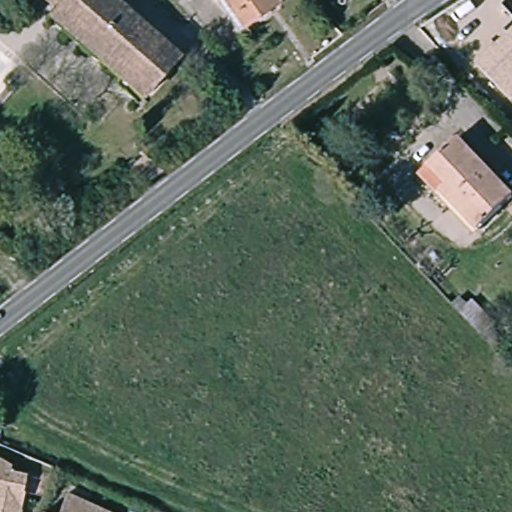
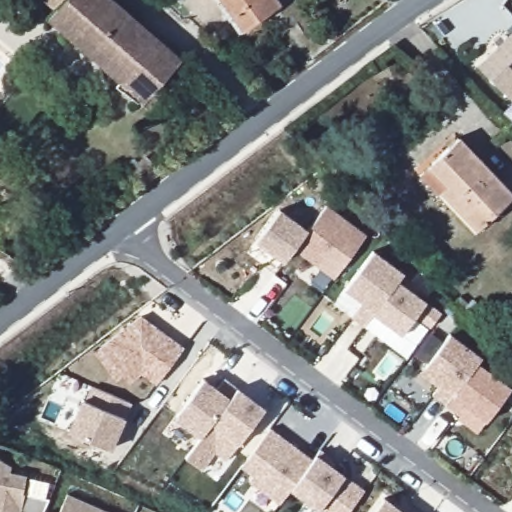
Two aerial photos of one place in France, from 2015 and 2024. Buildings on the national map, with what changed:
unchanged [(49,8),(39,0),(55,0),(49,8)]
unchanged [(172,48),(138,93),(43,16),(49,8),(55,0),(113,0),(172,48)]
unchanged [(250,29),(227,0),(279,0),(282,4),(250,29)]
unchanged [(475,64),(512,31),(512,101),(475,64)]
unchanged [(477,230),(442,191),(450,185),(428,161),(458,134),(512,193),(512,198),(477,230)]
new [(328,206),(368,236),(337,279),(297,249),(328,206)]
new [(297,249),(285,264),(255,243),(280,209),(310,231),(297,249)]
new [(365,328),(351,318),(361,302),(345,290),(375,250),(405,273),(398,283),(374,315),(365,328)]
new [(398,283),(442,315),(431,329),(415,318),(402,336),(374,315),(398,283)]
new [(460,296),(468,304),(473,300),(495,322),(482,335),(452,304),(460,296)]
new [(143,316),(185,348),(157,384),(142,373),(130,383),(125,374),(118,379),(97,351),(103,346),(143,316)]
new [(451,334),(482,357),(478,363),(447,405),(433,394),(440,386),(422,372),(426,367),(451,334)]
new [(478,363),(512,388),(487,421),(467,406),(461,415),(447,405),(478,363)]
new [(175,418),(204,378),(217,388),(225,378),(239,388),(231,399),(202,438),(175,418)]
new [(85,399),(89,400),(95,386),(132,402),(111,448),(70,431),(85,399)]
new [(252,398),(267,409),(261,416),(228,460),(217,451),(203,469),(187,458),(239,388),(252,398)]
new [(271,429),(313,461),(292,489),(282,504),(251,481),(255,475),(243,467),(250,458),(271,429)]
new [(321,451),(335,460),(331,465),(365,491),(349,512),(322,512),(292,489),(313,461),(321,451)]
unchanged [(10,475),(24,477),(19,512),(0,512),(0,465),(12,471),(10,475)]
unchanged [(109,512),(64,512),(73,495),(109,512)]
new [(403,512),(374,512),(385,498),(393,504),(403,512)]

